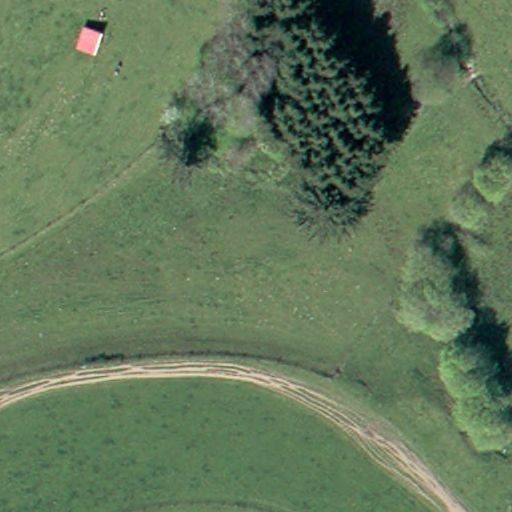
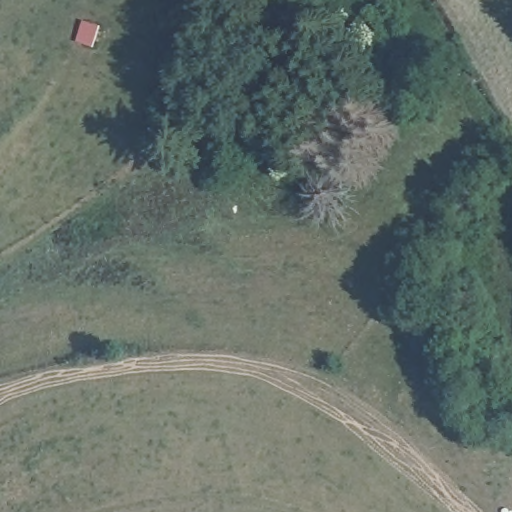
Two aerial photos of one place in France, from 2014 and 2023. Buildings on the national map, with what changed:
unchanged [(100,29),(92,49),(76,43),(84,23),(100,29)]

